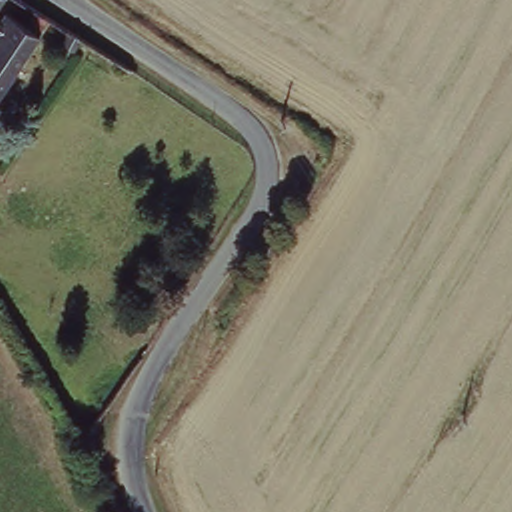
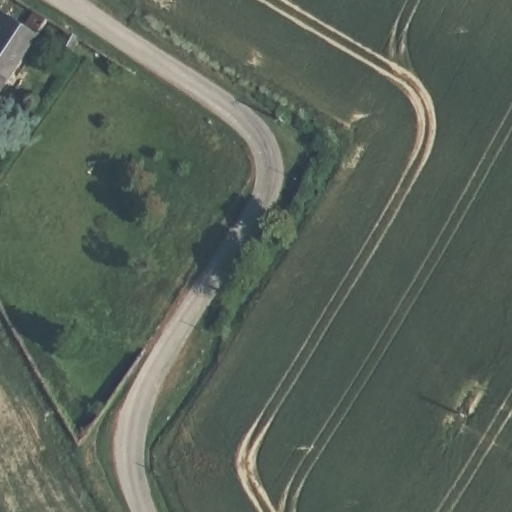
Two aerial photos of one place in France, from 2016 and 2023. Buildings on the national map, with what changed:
unchanged [(46,25),(0,93),(0,21),(4,15),(21,25),(28,14),(46,25)]
unchanged [(78,58),(67,49),(80,35),(94,45),(78,58)]

